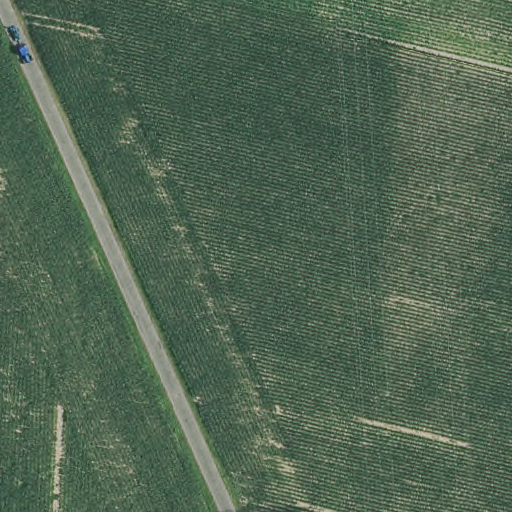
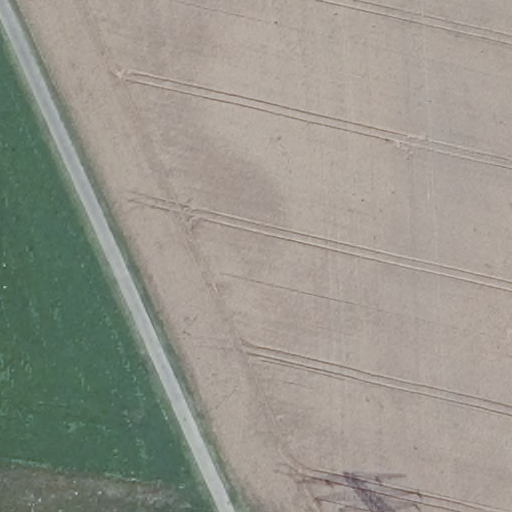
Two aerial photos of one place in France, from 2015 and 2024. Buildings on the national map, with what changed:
[]

